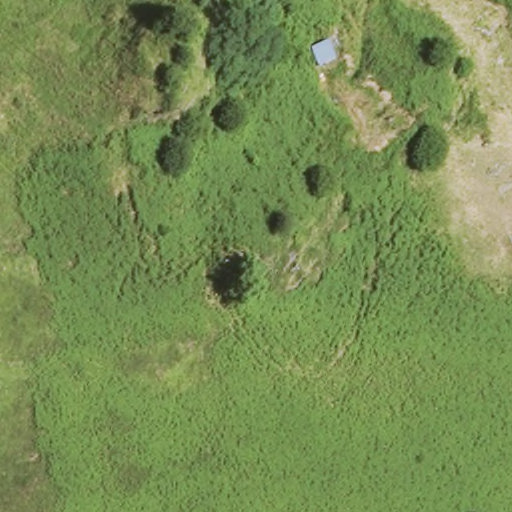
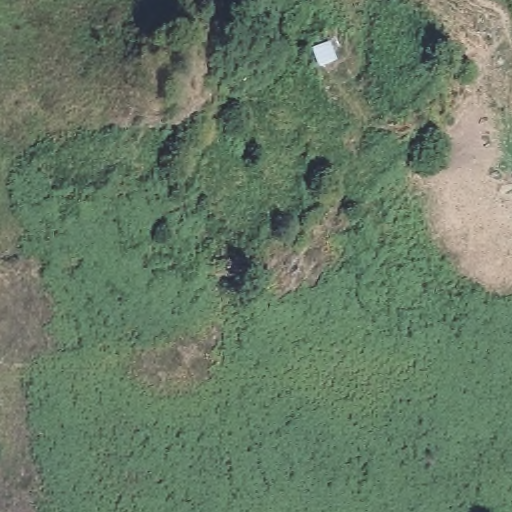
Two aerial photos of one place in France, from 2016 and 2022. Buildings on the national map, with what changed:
unchanged [(341,60),(344,75),(326,80),(314,47),(336,40),(341,60)]

